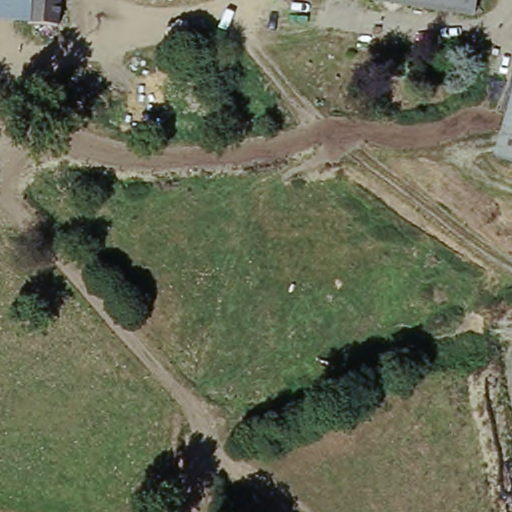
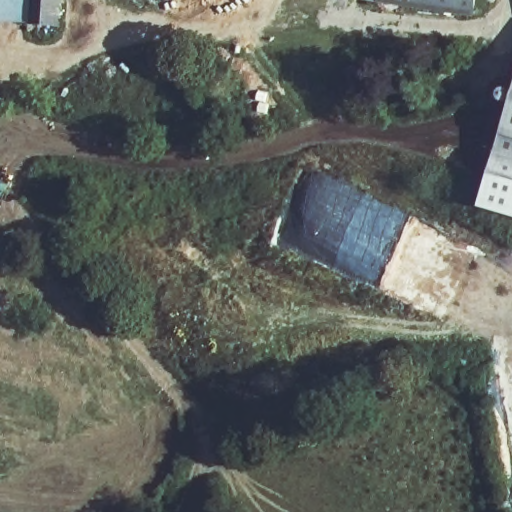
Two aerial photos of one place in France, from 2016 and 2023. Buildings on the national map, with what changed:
unchanged [(0,24),(0,0),(35,0),(32,28),(0,24)]
unchanged [(32,28),(35,0),(64,0),(61,32),(32,28)]
unchanged [(345,0),(385,0),(384,5),(345,0)]
unchanged [(483,0),(480,17),(384,5),(385,0),(483,0)]
demolished [(512,156),(490,149),(512,85),(512,156)]
new [(512,203),(485,194),(512,104),(512,203)]

